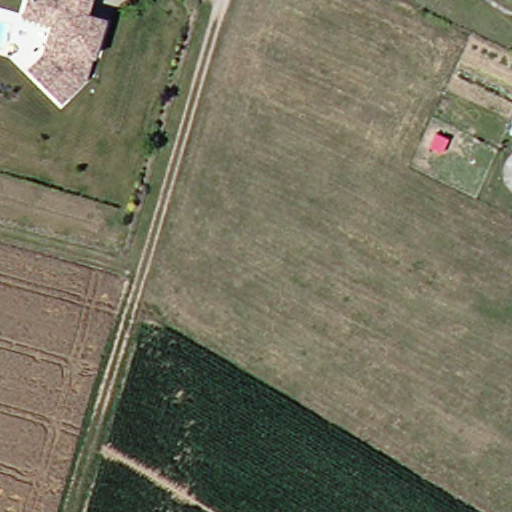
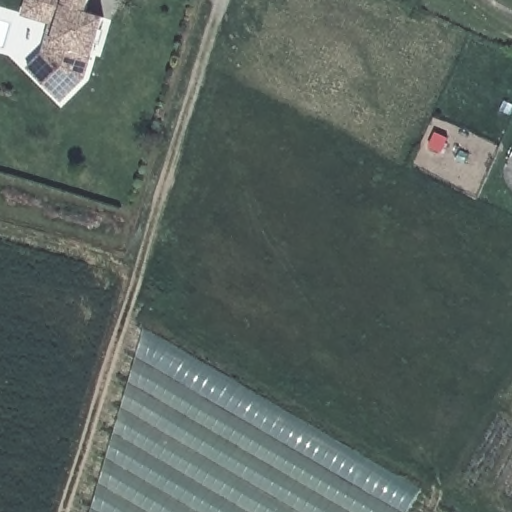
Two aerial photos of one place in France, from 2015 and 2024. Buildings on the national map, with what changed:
unchanged [(105,15),(95,51),(93,50),(85,74),(62,98),(30,64),(44,50),(49,36),(55,39),(59,23),(53,21),(55,17),(25,8),(28,0),(90,0),(90,1),(88,9),(105,15)]
new [(421,489),(407,512),(92,512),(145,328),(421,489)]

